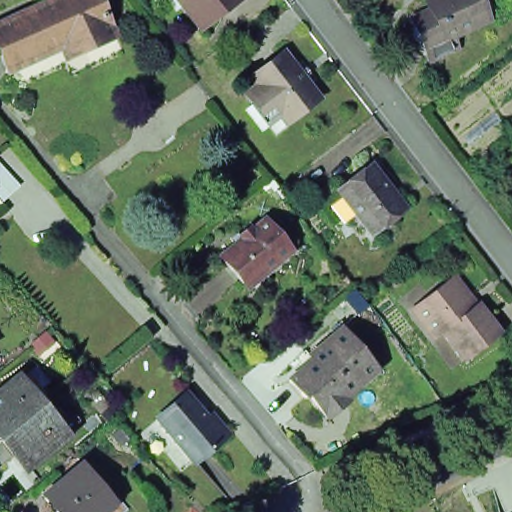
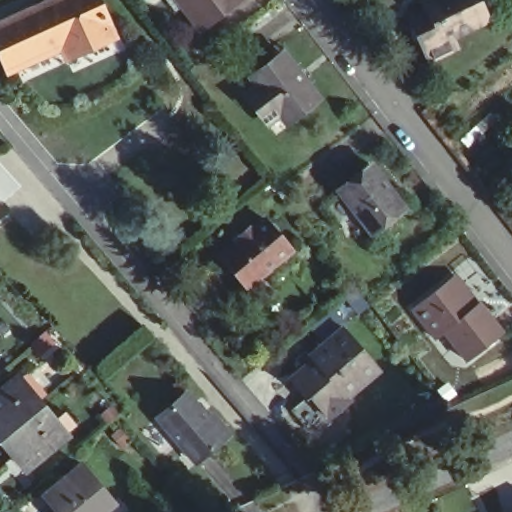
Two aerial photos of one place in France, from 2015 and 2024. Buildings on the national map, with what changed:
unchanged [(0,24),(0,19),(41,0),(111,0),(122,26),(90,41),(85,30),(17,60),(0,24)]
unchanged [(210,22),(202,28),(180,0),(239,0),(210,22)]
unchanged [(485,22),(450,39),(455,50),(427,62),(408,20),(433,10),(430,1),(432,0),(475,0),(485,22)]
unchanged [(271,116),(256,95),(267,87),(260,78),(291,54),(302,67),(305,65),(320,83),(316,86),(326,100),(312,111),(313,112),(298,125),(290,114),(277,123),(271,116)]
unchanged [(339,195),(371,170),(403,213),(371,238),(339,195)]
unchanged [(6,189),(0,194),(0,181),(6,189)]
unchanged [(249,299),(226,272),(247,255),(245,251),(256,241),(260,245),(271,235),(298,266),(270,291),(254,305),(249,299)]
unchanged [(476,360),(453,333),(445,338),(422,307),(457,280),(465,275),(486,302),(511,334),(476,360)]
unchanged [(376,365),(344,392),(348,397),(327,415),(307,392),(304,395),(288,376),(311,356),(307,351),(341,323),(376,365)]
unchanged [(10,445),(0,433),(0,404),(26,382),(50,411),(10,445)]
unchanged [(153,422),(175,403),(181,397),(209,428),(213,424),(225,437),(214,447),(192,466),(153,422)]
unchanged [(50,411),(75,440),(34,475),(10,445),(50,411)]
unchanged [(58,503),(55,497),(82,475),(113,511),(114,512),(53,512),(50,510),(58,503)]

